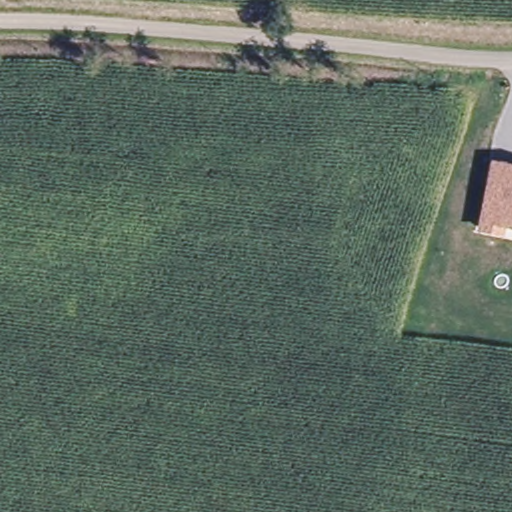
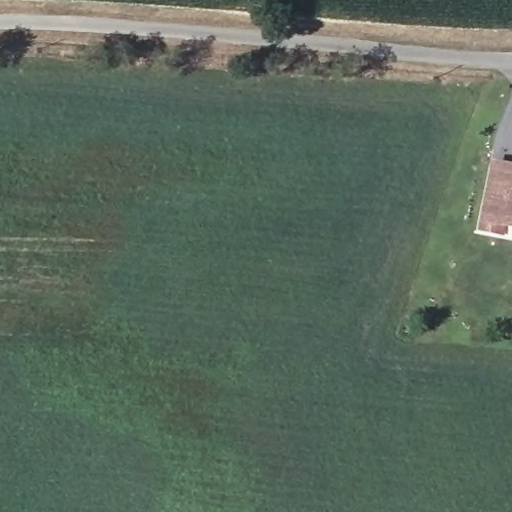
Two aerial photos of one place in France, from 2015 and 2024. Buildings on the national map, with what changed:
unchanged [(512,231),(506,230),(505,238),(479,232),(493,160),(512,164),(512,231)]

